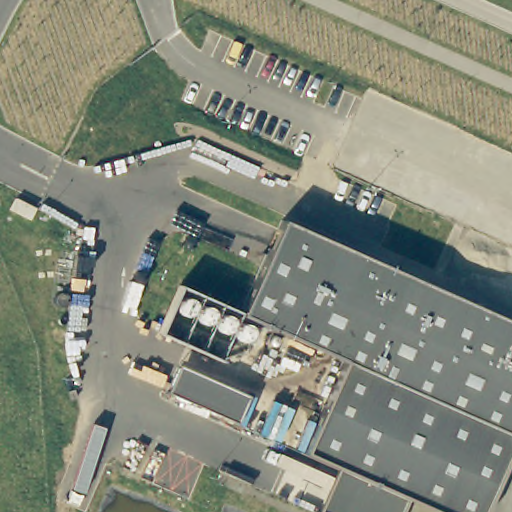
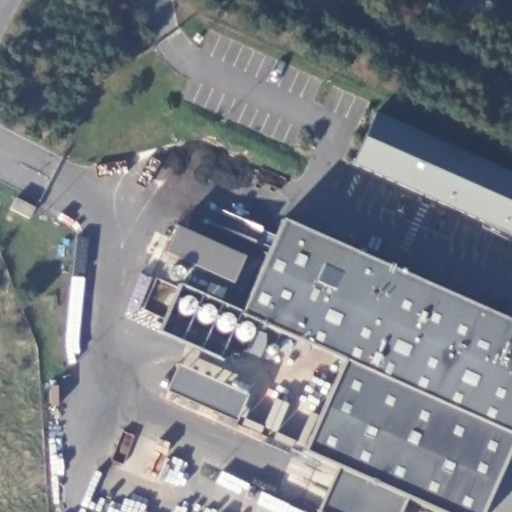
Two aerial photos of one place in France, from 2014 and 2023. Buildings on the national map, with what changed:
new [(512,238),(351,167),(375,114),(512,174),(512,238)]
unchanged [(400,512),(318,512),(337,465),(305,451),(345,360),(242,314),(282,222),(512,323),(512,445),(481,512),(442,512),(407,497),(400,512)]
unchanged [(170,391),(179,365),(247,395),(236,422),(170,391)]

